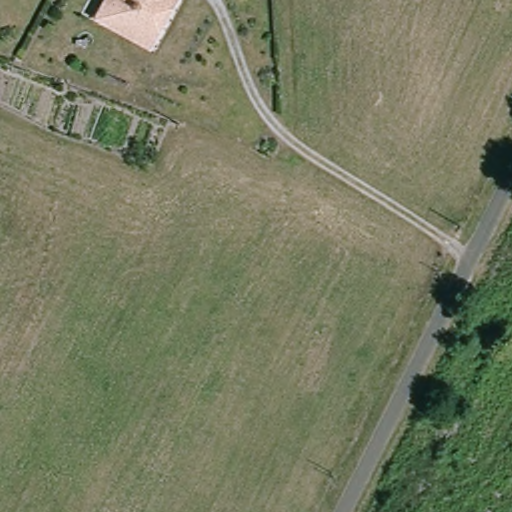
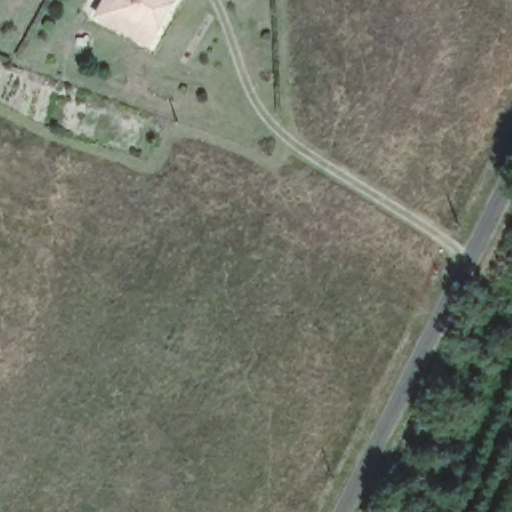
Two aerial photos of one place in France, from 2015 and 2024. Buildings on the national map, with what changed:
unchanged [(104,28),(113,0),(171,0),(156,46),(104,28)]

